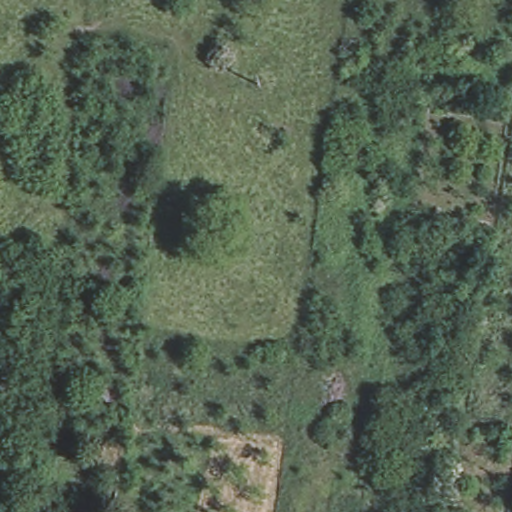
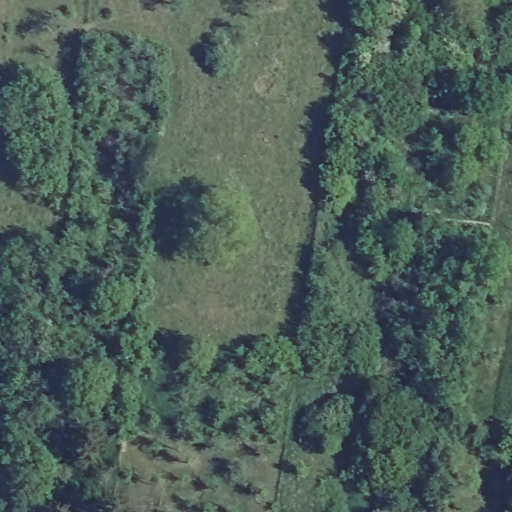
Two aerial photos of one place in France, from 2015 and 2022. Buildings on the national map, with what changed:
unchanged [(112,407),(94,408),(93,387),(113,384),(112,407)]
unchanged [(159,404),(138,403),(139,386),(159,385),(159,404)]

